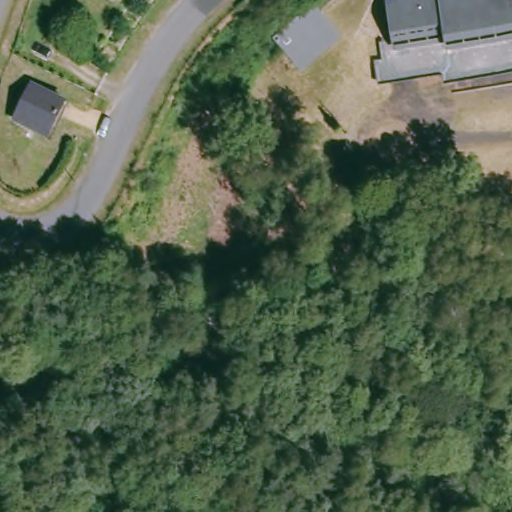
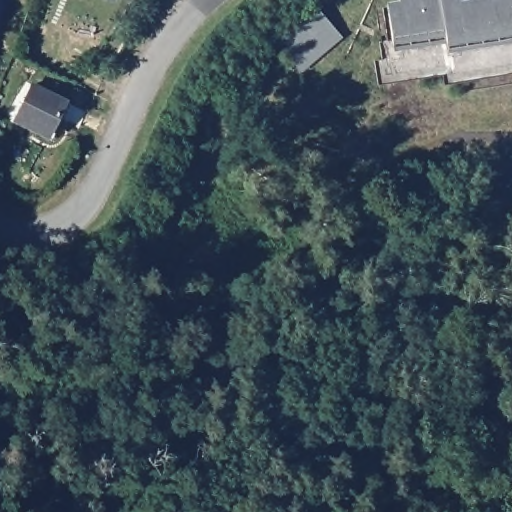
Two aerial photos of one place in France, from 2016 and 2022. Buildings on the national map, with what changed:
unchanged [(280,35),(320,2),(323,0),(335,0),(325,8),(346,34),(305,68),(280,35)]
unchanged [(458,78),(455,69),(390,78),(386,43),(397,41),(394,6),(405,5),(405,0),(512,0),(512,69),(488,74),(458,78)]
unchanged [(67,101),(52,132),(18,116),(34,85),(67,101)]

